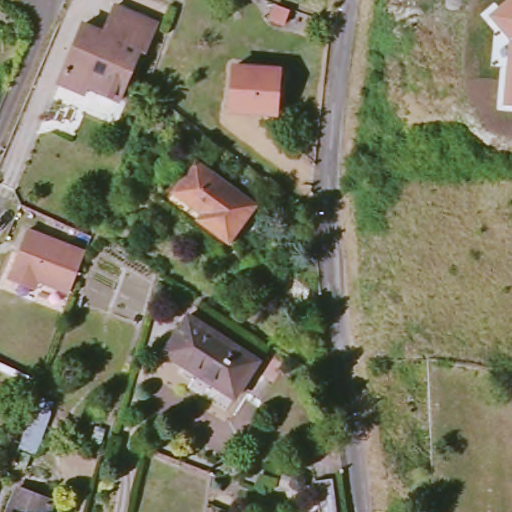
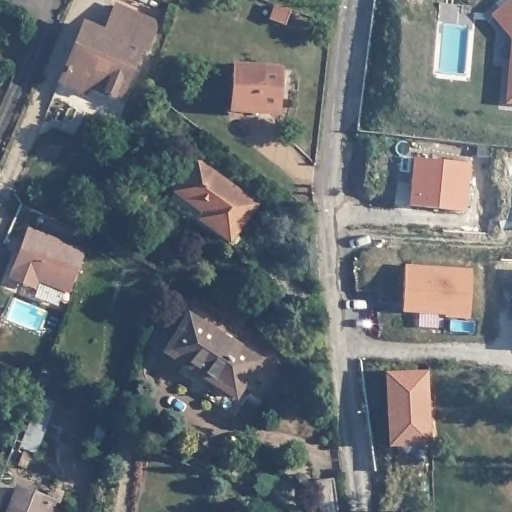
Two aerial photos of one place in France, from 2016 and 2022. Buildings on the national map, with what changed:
unchanged [(510,42),(488,14),(504,0),(512,0),(512,106),(504,105),(510,42)]
unchanged [(292,10),(286,26),(273,21),(278,6),(292,10)]
unchanged [(167,28),(156,56),(150,55),(130,103),(99,91),(95,98),(69,89),(93,30),(114,39),(126,12),(167,28)]
unchanged [(279,70),(277,114),(231,110),(235,67),(279,70)]
new [(411,205),(415,157),(470,163),(466,210),(411,205)]
unchanged [(202,167),(261,211),(235,245),(205,223),(209,217),(181,197),(202,167)]
unchanged [(37,279),(31,282),(18,279),(14,268),(29,229),(86,250),(71,290),(37,279)]
new [(403,310),(405,265),(472,268),(471,315),(403,310)]
unchanged [(259,361),(235,398),(166,351),(190,316),(259,361)]
new [(429,370),(436,441),(392,445),(386,373),(429,370)]
unchanged [(319,482),(339,480),(344,512),(323,512),(319,482)]
unchanged [(55,503),(51,512),(10,512),(19,490),(55,503)]

